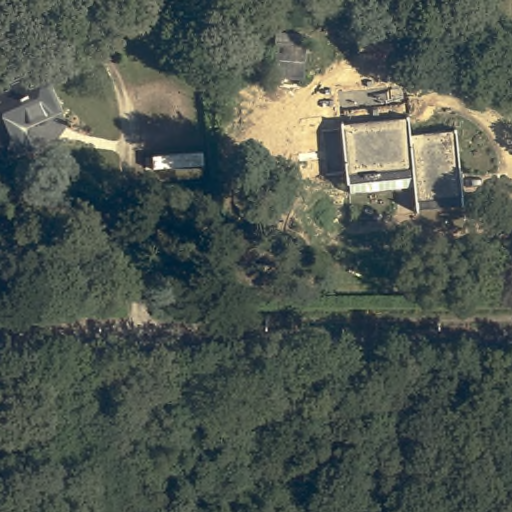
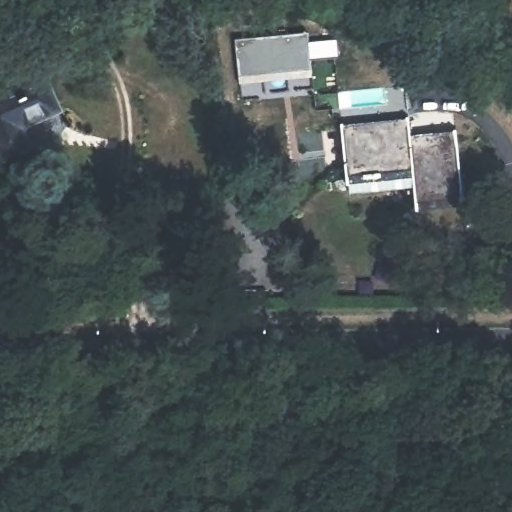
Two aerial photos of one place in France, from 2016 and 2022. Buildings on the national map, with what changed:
new [(238,84),(235,39),(307,34),(312,78),(238,84)]
demolished [(309,84),(278,82),(280,46),(311,49),(309,84)]
unchanged [(31,149),(5,160),(0,148),(0,92),(44,73),(61,110),(28,125),(27,125),(26,126),(25,127),(24,129),(24,130),(24,131),(24,132),(24,133),(24,134),(25,135),(31,149)]
unchanged [(420,183),(402,185),(356,190),(355,183),(353,183),(347,124),(414,116),(416,134),(462,129),(468,195),(469,201),(422,206),(421,200),(420,183)]

